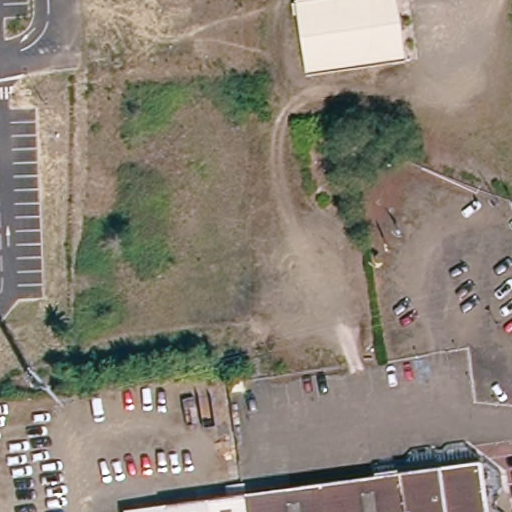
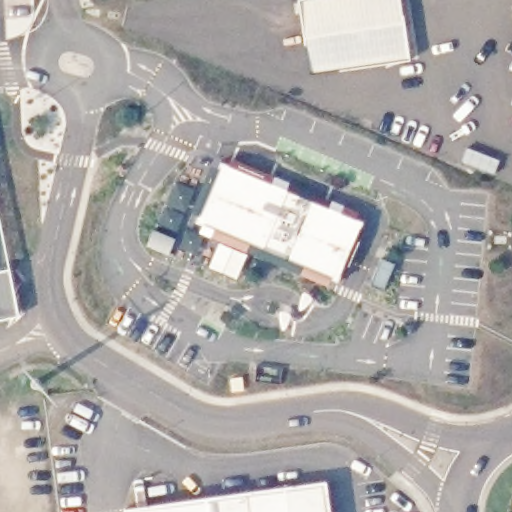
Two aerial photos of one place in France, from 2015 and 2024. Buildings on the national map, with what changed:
unchanged [(327,0),(402,0),(412,64),(312,80),(299,5),(327,0)]
new [(201,227),(194,225),(219,165),(226,167),(230,161),(360,215),(356,221),(361,224),(338,284),(331,282),(328,290),(247,256),(237,281),(209,268),(219,244),(199,235),(201,227)]
new [(0,320),(0,225),(19,317),(0,320)]
unchanged [(242,377),(243,389),(229,391),(229,378),(242,377)]
demolished [(378,477),(376,465),(408,462),(414,452),(436,449),(440,454),(447,453),(452,447),(469,443),(486,458),(484,463),(490,462),(506,476),(509,493),(499,501),(501,512),(169,512),(169,504),(378,477)]
new [(324,485),(328,512),(127,512),(245,496),(324,485)]

